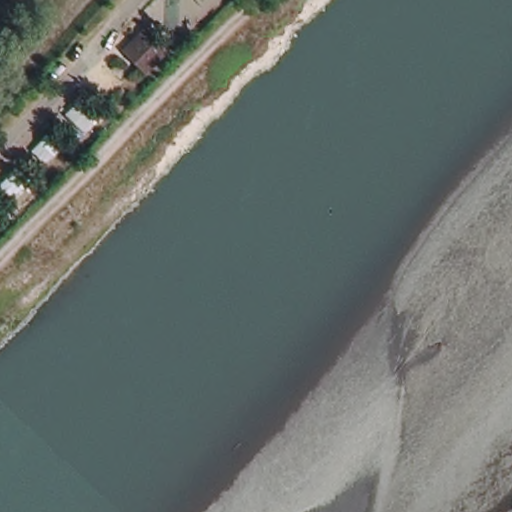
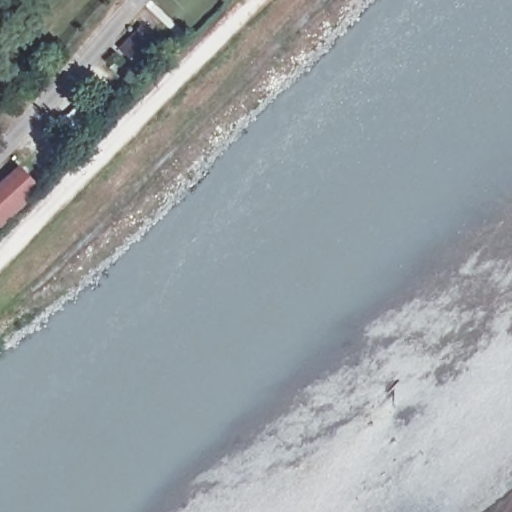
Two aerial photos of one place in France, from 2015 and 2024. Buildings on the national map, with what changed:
unchanged [(145,26),(167,48),(144,71),(122,49),(120,47),(142,24),(145,26)]
new [(22,168),(44,192),(2,232),(0,229),(0,188),(22,168)]

